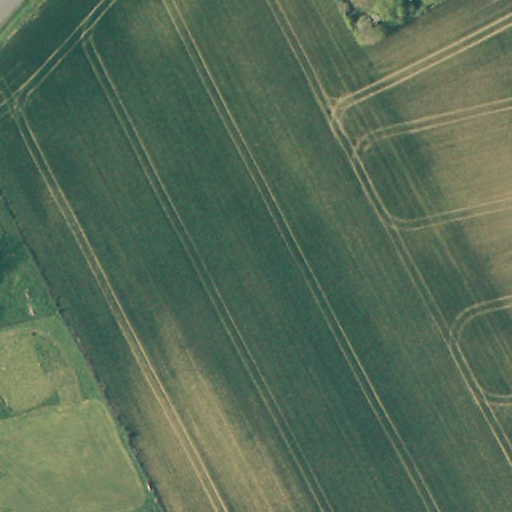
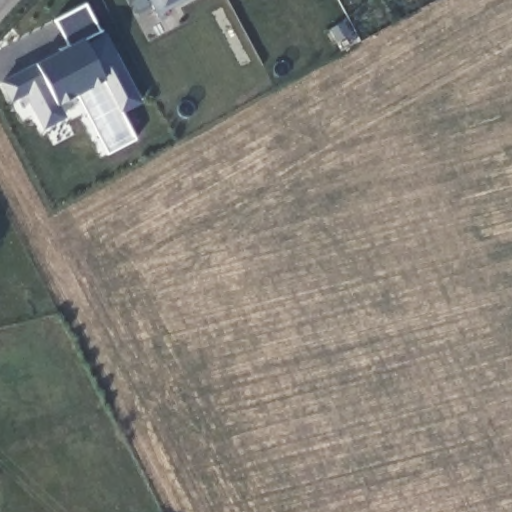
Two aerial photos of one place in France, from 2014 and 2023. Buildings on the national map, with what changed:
new [(156,17),(146,0),(190,0),(156,17)]
new [(109,32),(145,102),(122,114),(106,78),(61,102),(70,118),(45,131),(27,96),(10,105),(0,84),(0,80),(36,61),(66,45),(55,20),(87,4),(102,35),(109,32)]

